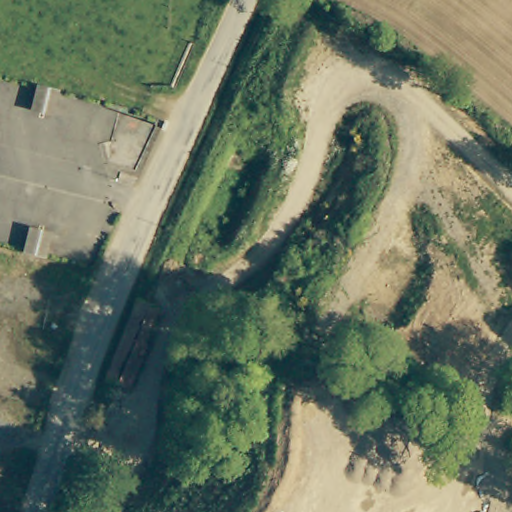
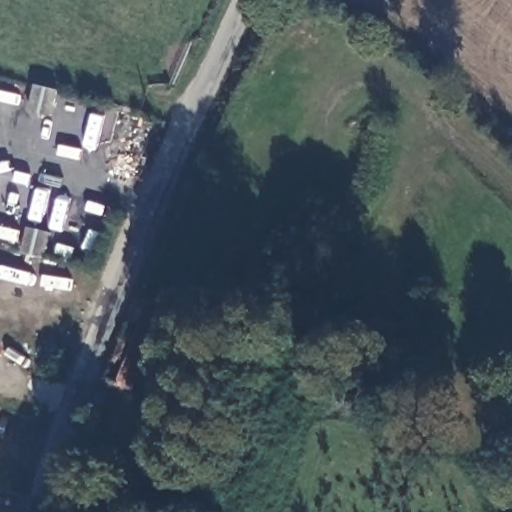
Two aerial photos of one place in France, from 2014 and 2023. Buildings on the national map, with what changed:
unchanged [(44,75),(66,80),(59,106),(38,100),(44,75)]
unchanged [(54,225),(48,252),(45,251),(26,245),(33,220),(54,225)]
unchanged [(149,289),(152,282),(160,284),(157,296),(164,299),(132,377),(106,368),(142,288),(149,289)]

